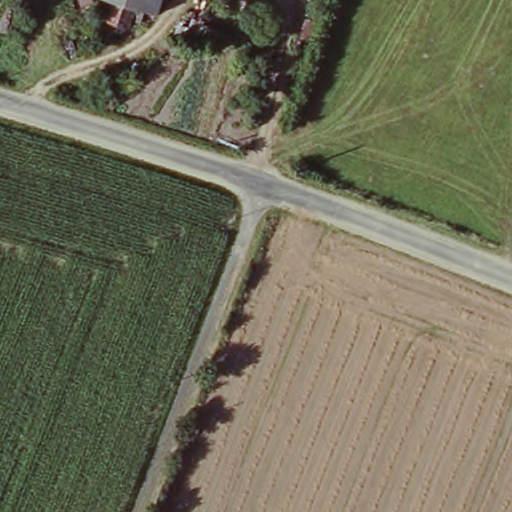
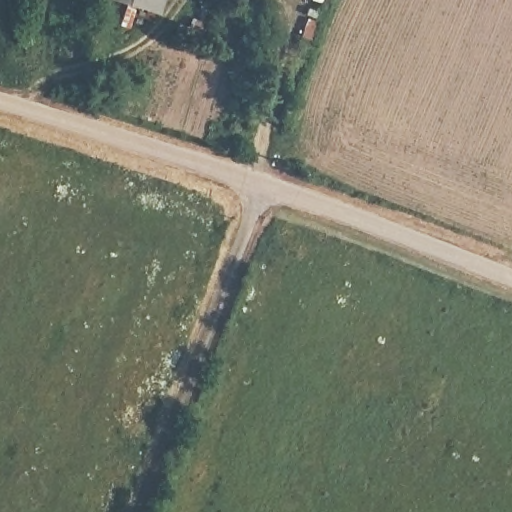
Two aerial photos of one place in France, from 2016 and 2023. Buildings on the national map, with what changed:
unchanged [(134,11),(127,33),(107,26),(113,6),(99,1),(99,0),(163,0),(157,19),(134,11)]

